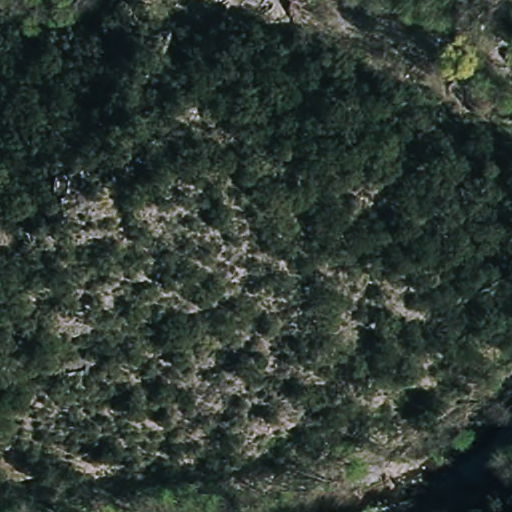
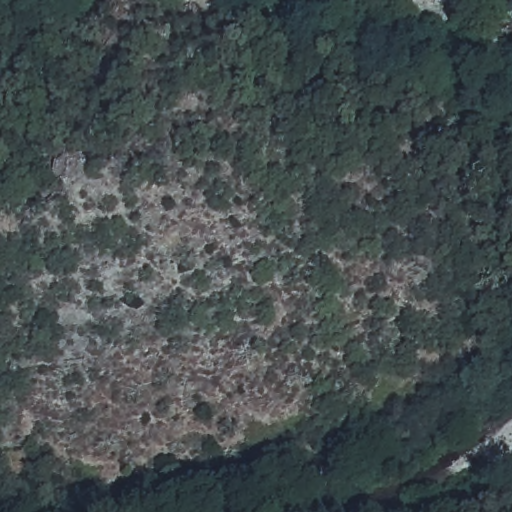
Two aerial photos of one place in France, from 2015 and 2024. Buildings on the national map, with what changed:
[]

